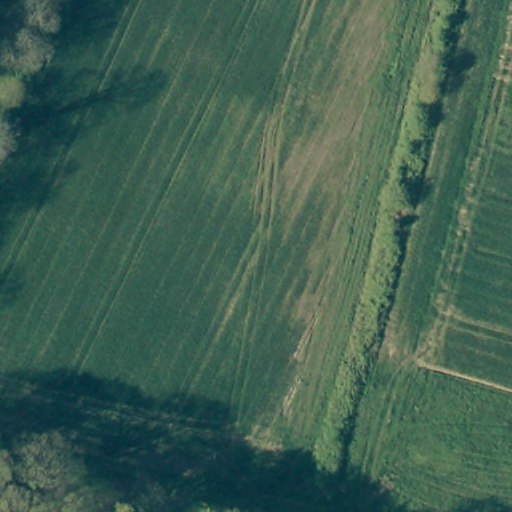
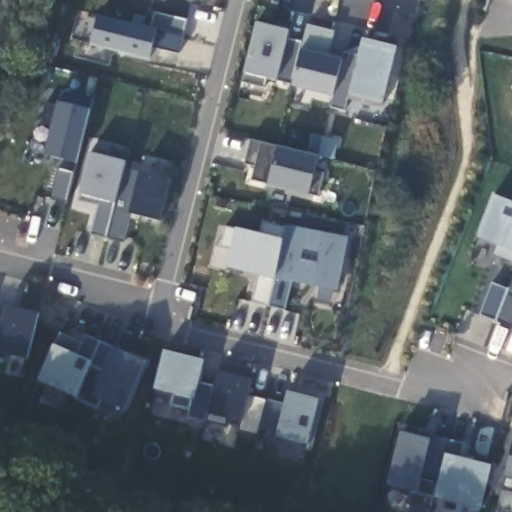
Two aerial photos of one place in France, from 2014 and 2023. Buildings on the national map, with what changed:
new [(177,55),(154,49),(149,61),(89,45),(97,15),(150,29),(155,12),(186,20),(177,55)]
new [(383,104),(382,107),(348,99),(344,112),(329,107),(333,96),(267,80),(264,87),(241,82),(244,72),(256,24),(291,31),(289,39),(302,41),(307,25),(336,32),(332,47),(358,53),(362,39),(397,47),(383,104)]
new [(511,90),(512,85),(512,90),(511,90)]
new [(92,109),(77,165),(44,157),(57,102),(60,91),(95,99),(92,109)]
new [(314,169),(324,172),(317,199),(307,197),(267,187),(252,182),(255,167),(245,165),(251,140),(277,146),(317,155),(314,169)]
new [(160,222),(131,215),(122,241),(90,233),(97,207),(77,202),(80,195),(91,153),(129,162),(126,169),(171,180),(160,222)]
new [(493,256),(500,246),(477,237),(496,194),(512,200),(512,262),(493,256)]
new [(338,292),(291,282),(284,312),(251,304),(260,276),(227,268),(237,229),(262,235),(263,222),(350,239),(338,292)]
new [(478,315),(491,283),(507,289),(512,274),(512,327),(478,315)]
new [(0,353),(0,324),(1,324),(7,306),(40,315),(27,359),(0,353)]
new [(125,412),(103,401),(97,411),(74,397),(37,381),(55,344),(61,332),(84,343),(87,336),(115,347),(149,362),(125,412)]
new [(200,383),(214,387),(219,370),(252,377),(247,396),(285,405),(288,391),(321,400),(309,443),(277,435),(261,431),(258,437),(239,432),(241,422),(229,420),(227,428),(187,418),(190,412),(171,407),(175,395),(154,390),(163,351),(205,360),(200,383)]
new [(458,457),(492,466),(481,510),(435,498),(430,512),(407,506),(413,492),(388,486),(401,431),(402,424),(420,430),(419,435),(465,444),(458,457)]
new [(502,490),(505,477),(512,449),(512,493),(502,490)]

